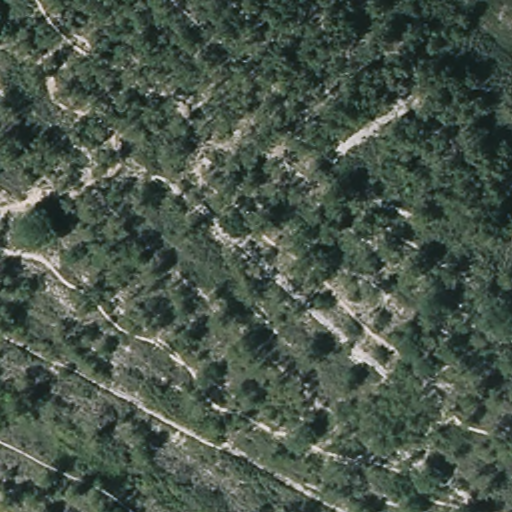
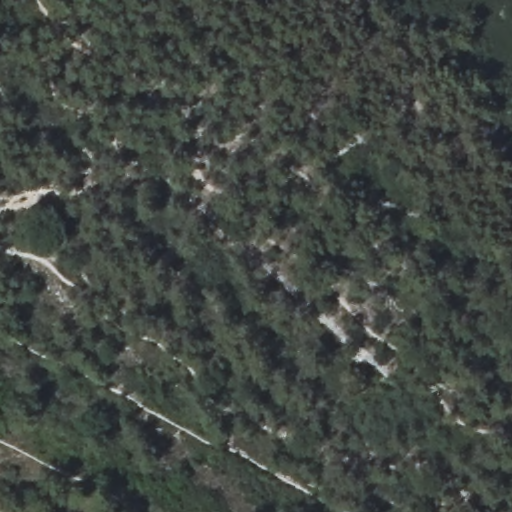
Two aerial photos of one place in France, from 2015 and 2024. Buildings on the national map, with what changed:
unchanged [(261,8),(274,19),(263,31),(251,19),(261,8)]

